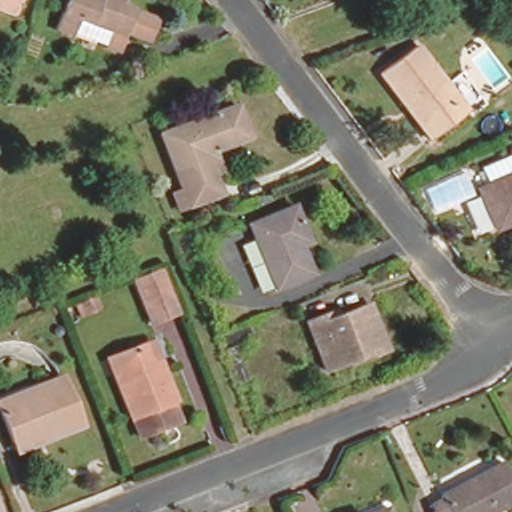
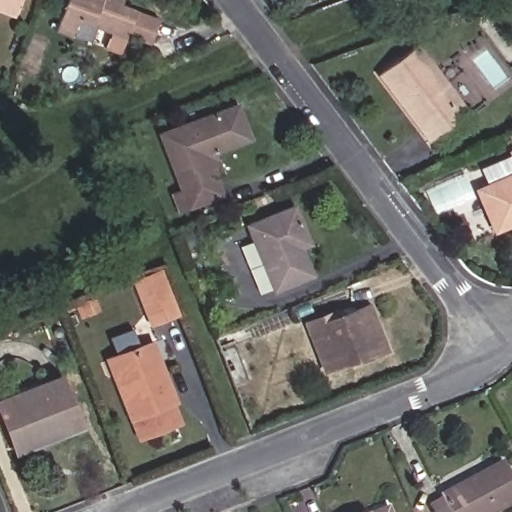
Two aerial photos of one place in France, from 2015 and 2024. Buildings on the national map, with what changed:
unchanged [(0,8),(0,0),(16,0),(12,12),(0,8)]
unchanged [(49,22),(56,0),(122,0),(159,13),(150,45),(122,36),(117,48),(70,30),(49,22)]
unchanged [(396,104),(371,70),(411,40),(457,105),(430,127),(420,135),(396,104)]
unchanged [(167,216),(162,196),(176,192),(154,129),(227,101),(242,141),(211,152),(220,177),(205,182),(212,201),(167,216)]
unchanged [(508,222),(502,207),(489,212),(476,187),(512,170),(512,220),(508,222)]
unchanged [(307,245),(293,251),(302,274),(267,288),(241,220),(290,201),(307,245)]
unchanged [(174,312),(150,322),(132,280),(157,268),(174,312)]
unchanged [(99,314),(82,322),(77,307),(94,301),(99,314)]
unchanged [(367,306),(383,351),(352,362),(349,355),(321,366),(304,321),(318,315),(322,323),(367,306)]
unchanged [(167,396),(173,413),(137,427),(106,351),(142,337),(149,335),(159,359),(172,392),(167,396)]
unchanged [(7,437),(0,417),(0,393),(58,373),(72,412),(76,423),(11,449),(7,437)]
unchanged [(512,481),(512,499),(489,512),(433,512),(428,502),(502,462),(512,481)]
unchanged [(391,512),(370,512),(388,505),(391,512)]

